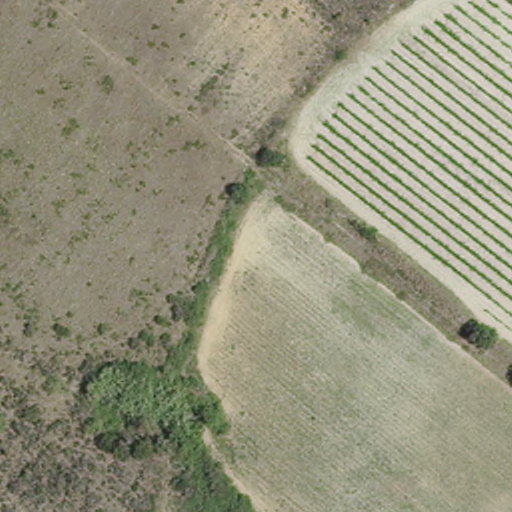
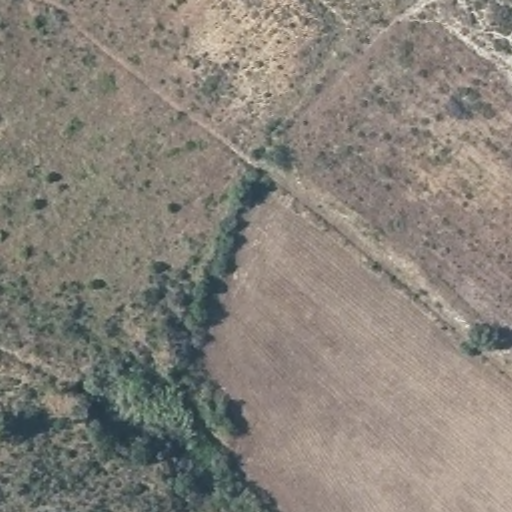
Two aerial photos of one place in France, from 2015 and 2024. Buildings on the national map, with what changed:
[]

